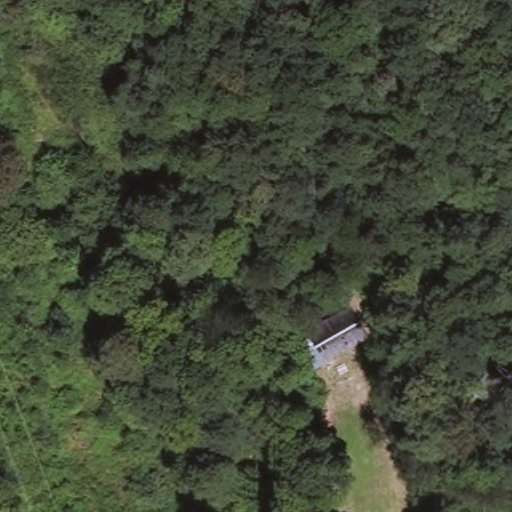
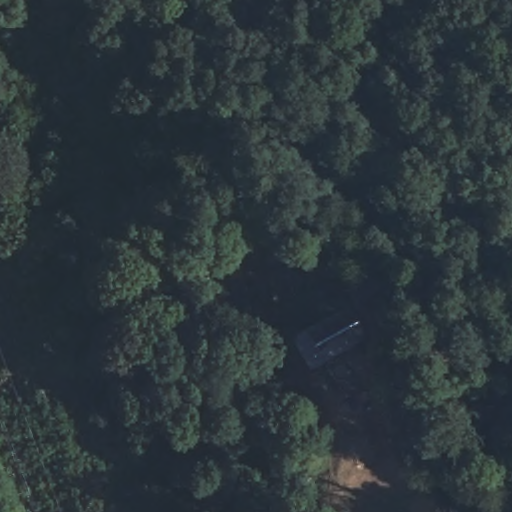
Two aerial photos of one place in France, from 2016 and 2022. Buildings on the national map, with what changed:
unchanged [(314,333),(362,308),(378,341),(355,353),(330,366),(314,333)]

